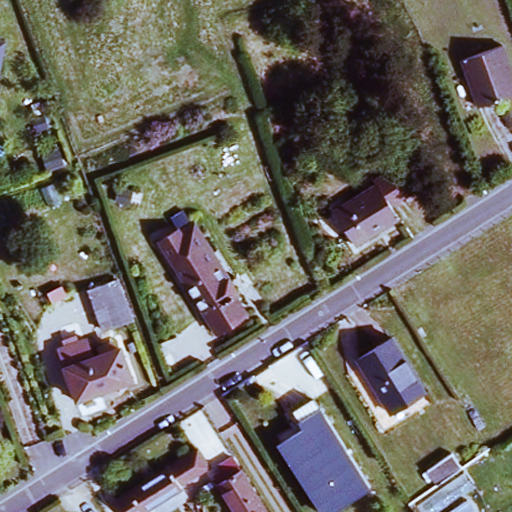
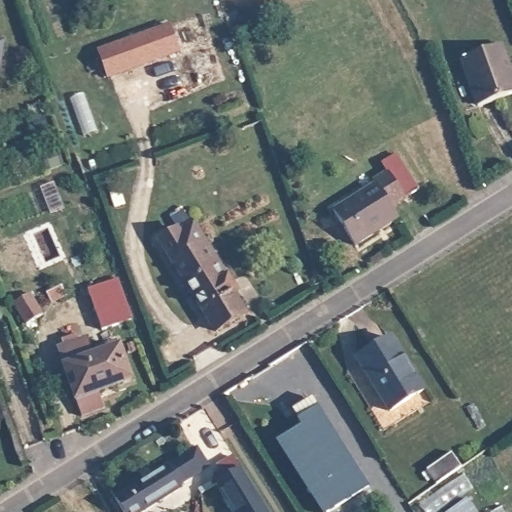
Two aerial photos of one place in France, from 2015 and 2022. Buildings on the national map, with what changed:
new [(170,24),(181,53),(108,79),(98,49),(170,24)]
unchanged [(4,38),(0,61),(0,37),(4,38)]
unchanged [(454,61),(496,46),(512,92),(512,94),(472,108),(454,61)]
unchanged [(361,189),(363,186),(375,178),(371,170),(384,162),(405,197),(379,215),(386,224),(344,252),(319,216),(361,189)]
unchanged [(153,244),(173,232),(175,234),(186,228),(229,297),(227,299),(239,318),(209,337),(153,244)]
unchanged [(100,331),(86,294),(115,284),(129,321),(100,331)]
unchanged [(50,303),(45,292),(58,286),(64,297),(50,303)]
unchanged [(424,391),(388,414),(354,360),(391,337),(424,391)]
unchanged [(123,390),(89,402),(88,404),(69,411),(54,368),(51,360),(80,349),(87,367),(112,358),(123,390)]
unchanged [(327,512),(317,512),(298,480),(302,477),(280,442),(299,430),(293,421),(312,409),(362,490),(327,512)]
unchanged [(203,464),(201,465),(208,475),(190,487),(183,476),(174,481),(175,483),(130,512),(121,512),(109,494),(190,444),(203,464)]
unchanged [(211,479),(218,474),(207,454),(221,446),(233,465),(262,512),(231,512),(211,479)]
unchanged [(424,473),(449,456),(459,470),(434,487),(424,473)]
unchanged [(464,502),(471,512),(450,512),(464,502)]

